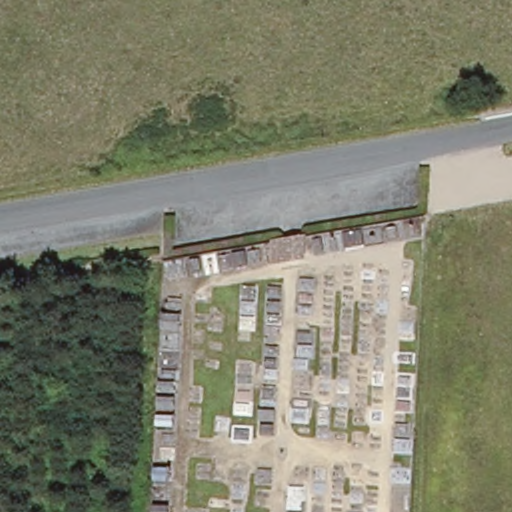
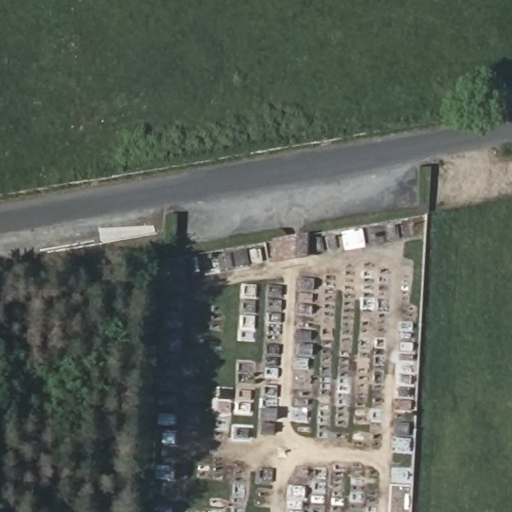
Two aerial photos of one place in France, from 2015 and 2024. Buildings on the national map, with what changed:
unchanged [(278,261),(276,245),(309,240),(311,256),(278,261)]

